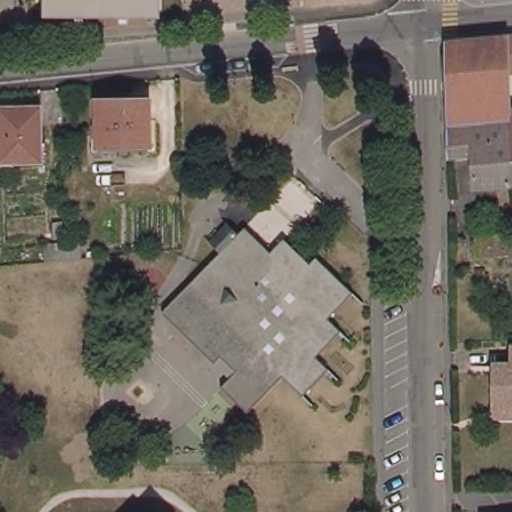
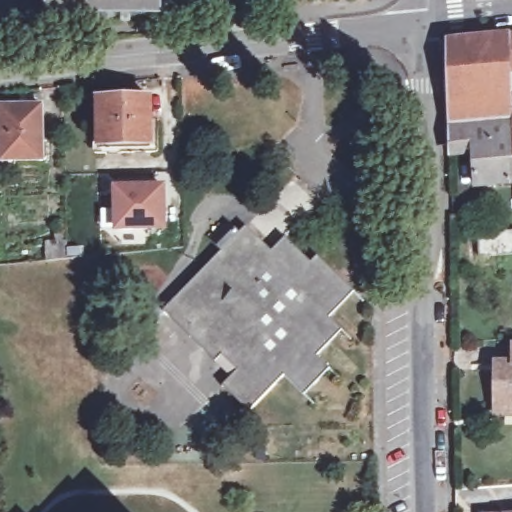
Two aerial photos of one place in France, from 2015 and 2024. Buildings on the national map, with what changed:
unchanged [(159,17),(44,18),(45,0),(160,0),(159,17)]
unchanged [(512,72),(508,72),(505,42),(512,41),(512,72)]
unchanged [(448,103),(447,103),(444,52),(449,47),(492,43),(497,99),(448,103)]
unchanged [(101,143),(100,100),(153,99),(153,118),(159,118),(160,144),(159,146),(159,147),(159,149),(158,150),(155,151),(100,153),(99,150),(98,144),(101,143)]
unchanged [(473,163),(471,149),(449,150),(447,103),(448,103),(497,99),(499,114),(511,113),(512,136),(512,187),(476,190),(473,163)]
unchanged [(2,162),(1,108),(43,108),(44,160),(2,162)]
unchanged [(512,113),(512,136),(511,113),(512,113)]
new [(166,185),(167,232),(113,234),(113,187),(166,185)]
unchanged [(218,363),(164,312),(223,252),(212,240),(231,222),(242,232),(248,226),(274,251),(287,238),(313,262),(319,256),(356,292),(331,318),(344,331),(319,357),(332,369),(306,396),(286,376),(251,414),(224,389),(241,371),(224,356),(218,363)]
unchanged [(480,235),(512,232),(512,254),(482,257),(480,235)]
unchanged [(48,261),(48,243),(69,242),(83,242),(83,257),(69,259),(48,261)]
unchanged [(512,412),(504,412),(504,373),(512,373),(512,412)]

